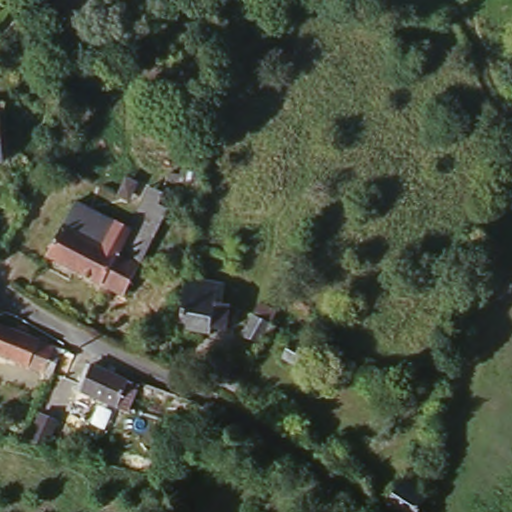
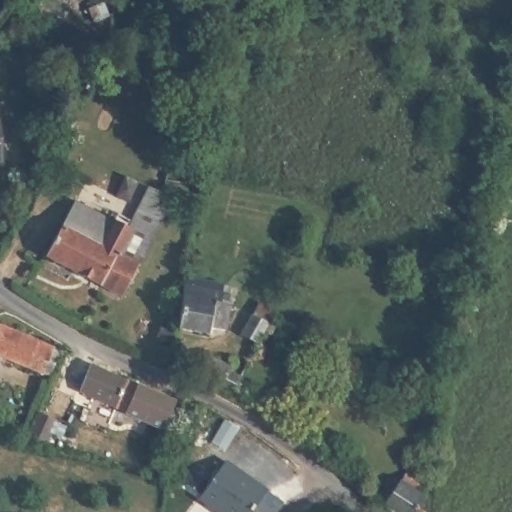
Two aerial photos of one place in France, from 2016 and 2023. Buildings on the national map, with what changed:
unchanged [(136,267),(118,257),(143,209),(146,210),(151,202),(166,210),(140,261),(136,267)]
unchanged [(77,209),(92,215),(92,219),(117,231),(108,250),(65,230),(77,209)]
unchanged [(108,250),(118,257),(136,267),(120,298),(51,260),(65,230),(108,250)]
unchanged [(226,288),(226,303),(235,308),(231,332),(220,332),(219,342),(180,336),(185,281),(226,288)]
unchanged [(250,327),(261,308),(267,298),(278,305),(274,315),(262,335),(250,327)]
unchanged [(47,375),(32,370),(0,360),(0,327),(41,339),(46,340),(57,348),(47,375)]
demolished [(309,368),(289,358),(297,343),(308,348),(313,338),(324,343),(309,368)]
unchanged [(208,358),(235,363),(240,375),(239,385),(205,381),(208,358)]
unchanged [(127,415),(118,411),(107,408),(88,402),(76,399),(86,370),(97,372),(117,378),(129,383),(137,386),(127,415)]
unchanged [(43,408),(64,413),(57,443),(35,439),(43,408)]
new [(230,459),(269,489),(285,502),(279,512),(212,512),(198,502),(230,459)]
unchanged [(405,480),(419,492),(410,501),(416,507),(411,512),(388,512),(380,505),(405,480)]

